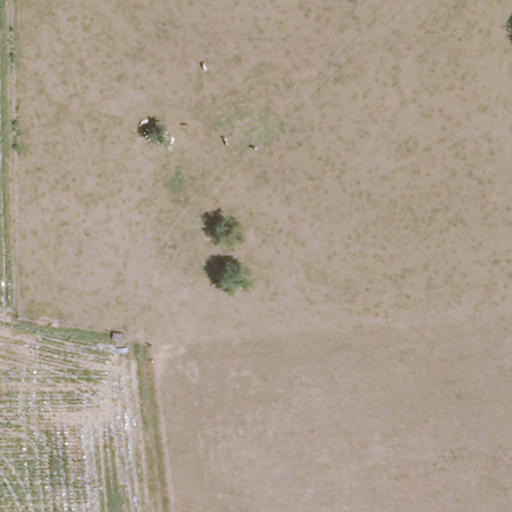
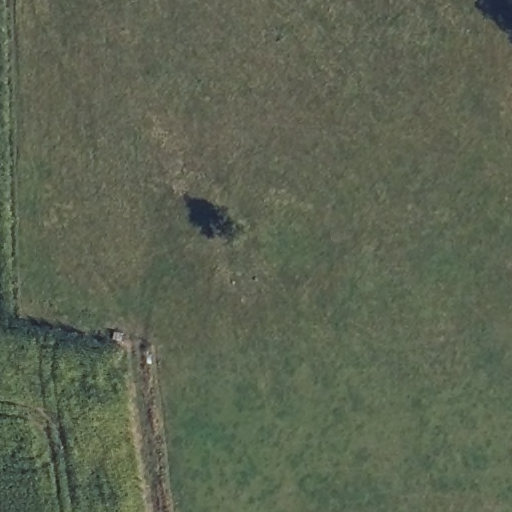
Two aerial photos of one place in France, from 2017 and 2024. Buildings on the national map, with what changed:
[]

